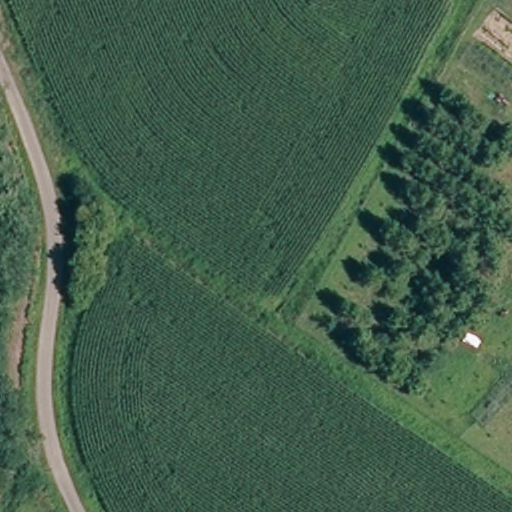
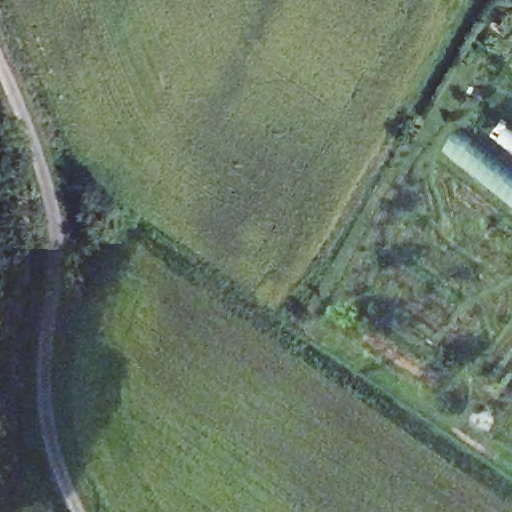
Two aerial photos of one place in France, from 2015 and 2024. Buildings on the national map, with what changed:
new [(512,206),(444,152),(462,128),(512,167),(512,206)]

